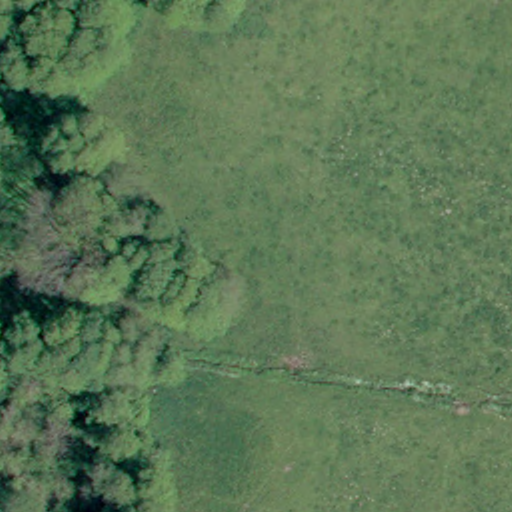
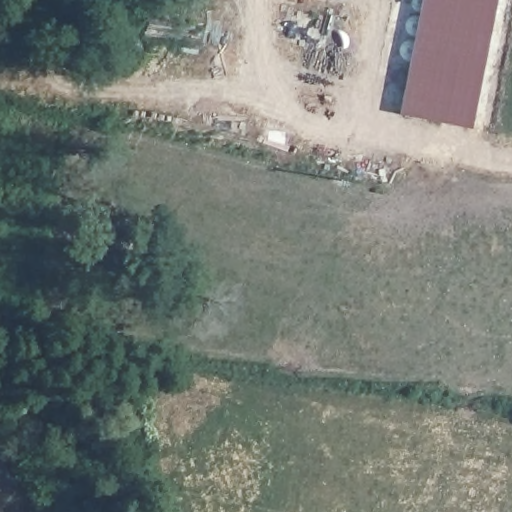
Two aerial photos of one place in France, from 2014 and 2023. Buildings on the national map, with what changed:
new [(400,112),(422,0),(494,0),(469,127),(400,112)]

